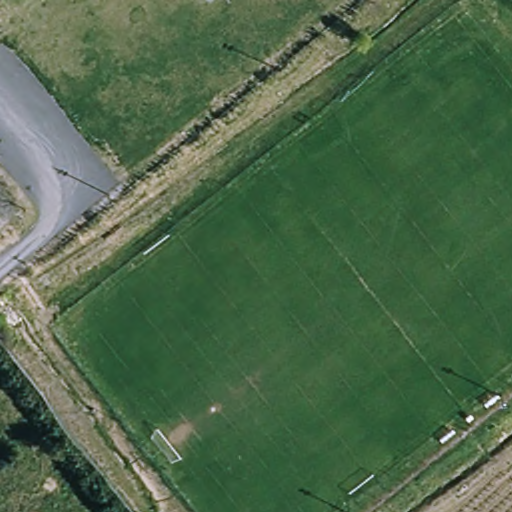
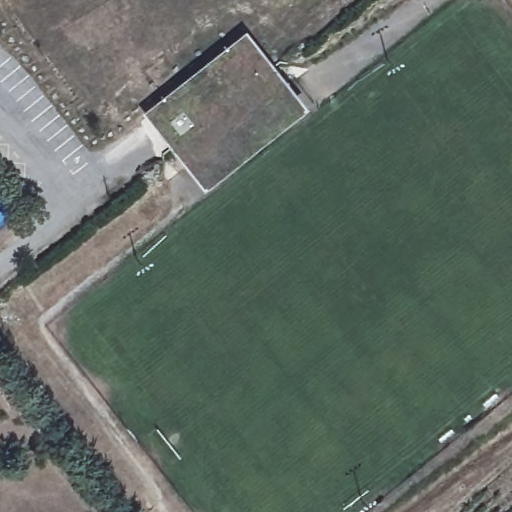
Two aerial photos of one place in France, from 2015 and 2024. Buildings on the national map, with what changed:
new [(141,113),(246,31),(306,108),(204,189),(141,113)]

